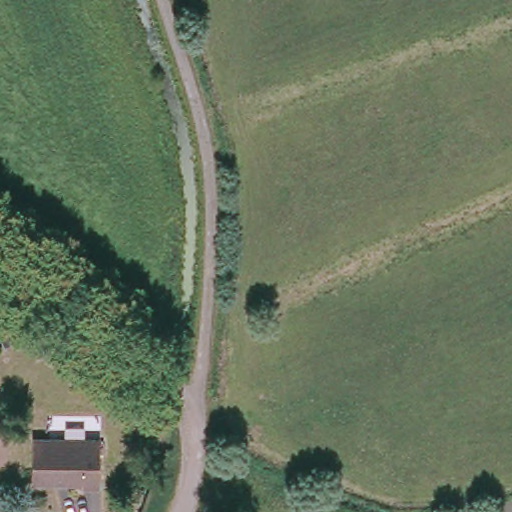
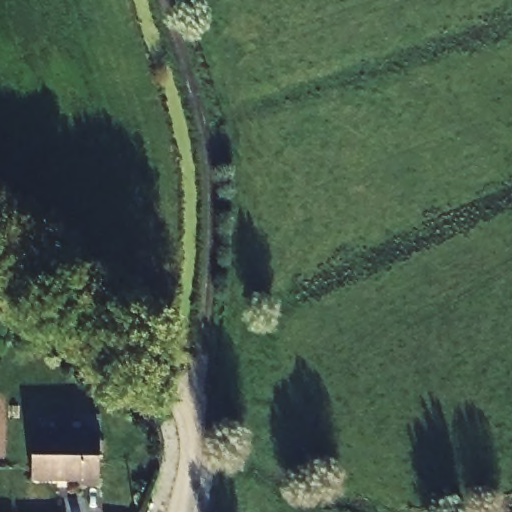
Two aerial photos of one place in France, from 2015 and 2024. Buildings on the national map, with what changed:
unchanged [(102,490),(88,490),(88,483),(33,482),(33,436),(103,438),(102,490)]

